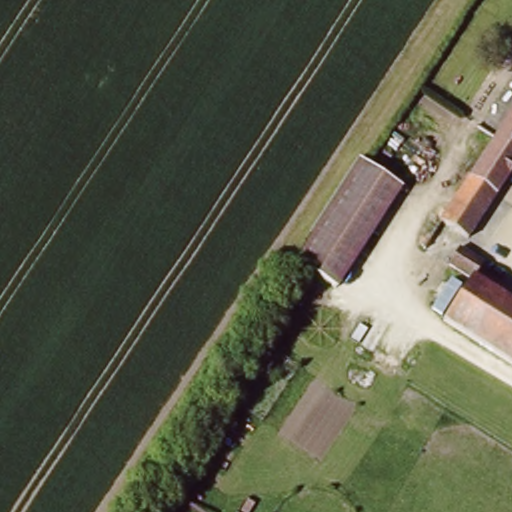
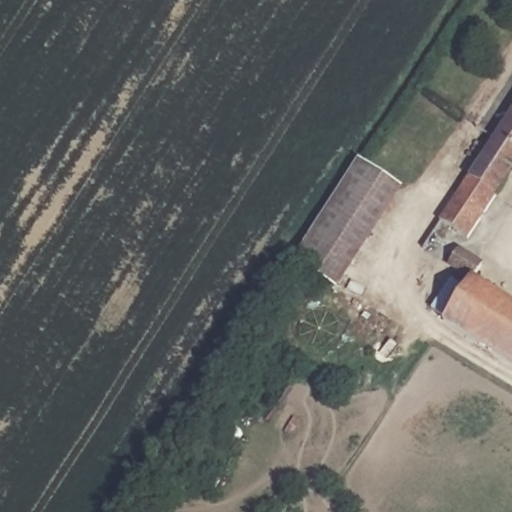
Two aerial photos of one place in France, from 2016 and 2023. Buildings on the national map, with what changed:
unchanged [(440,221),(512,101),(512,182),(473,240),(440,221)]
unchanged [(341,290),(301,266),(361,164),(401,188),(341,290)]
unchanged [(453,261),(465,253),(512,277),(512,363),(445,323),(451,311),(453,261)]

